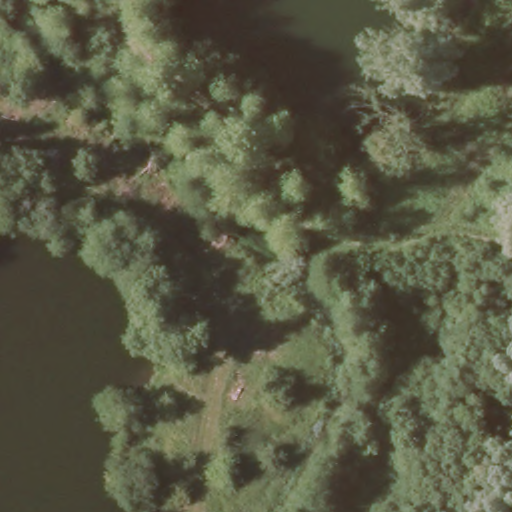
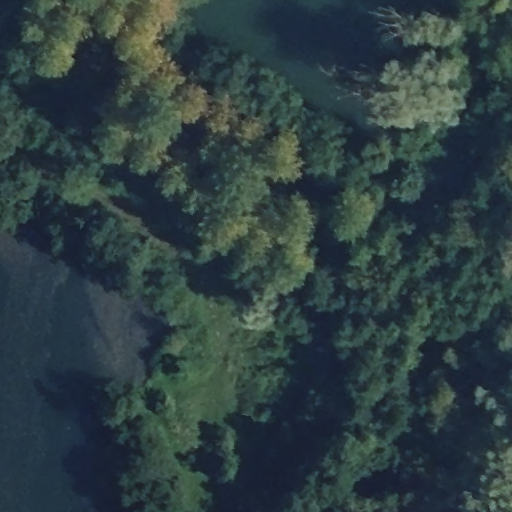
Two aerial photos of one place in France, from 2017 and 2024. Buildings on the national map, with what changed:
unchanged [(472,173),(477,158),(505,165),(499,181),(472,173)]

